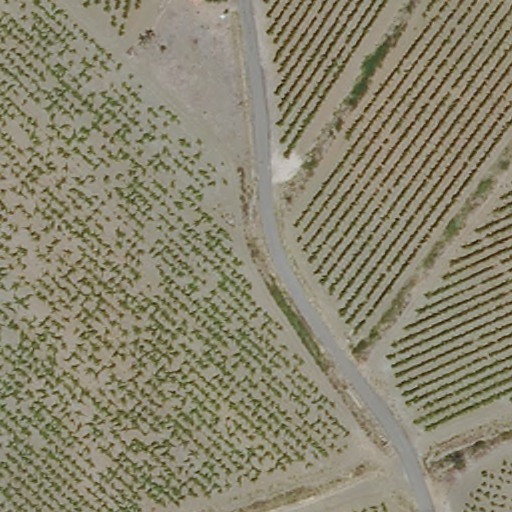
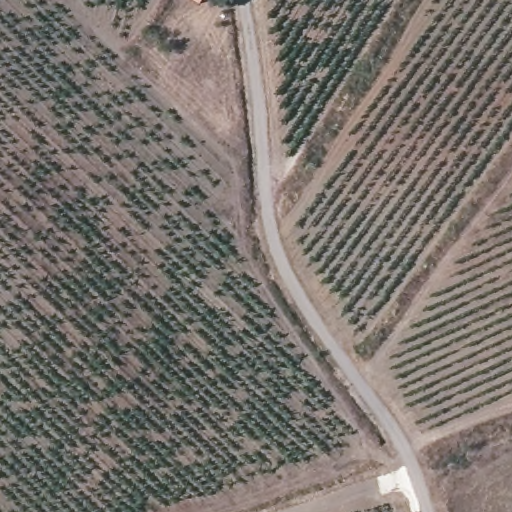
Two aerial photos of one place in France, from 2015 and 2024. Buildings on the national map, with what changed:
unchanged [(188,0),(187,2),(185,0),(188,0)]

